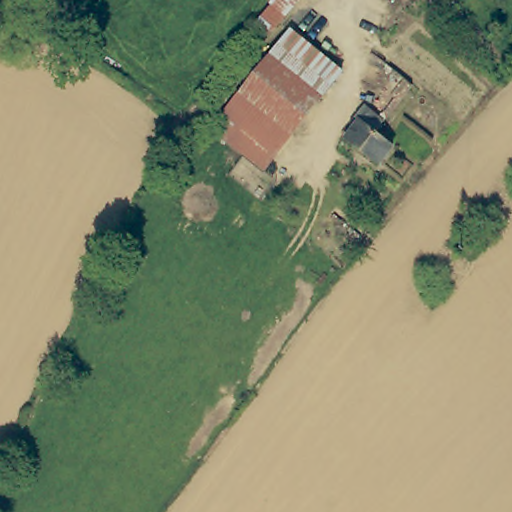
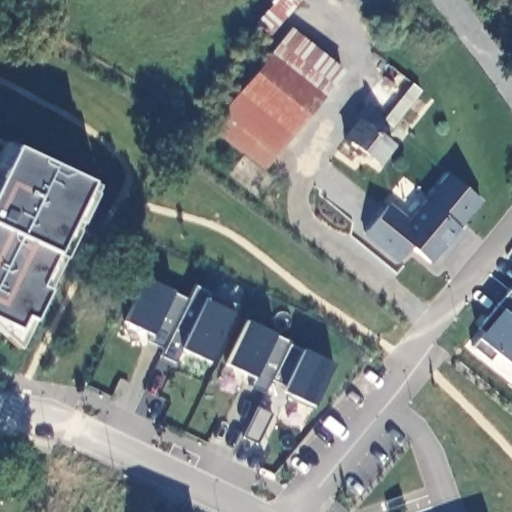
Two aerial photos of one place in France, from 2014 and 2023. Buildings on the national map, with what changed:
unchanged [(273,0),(301,0),(269,34),(254,20),(273,0)]
unchanged [(281,26),(340,65),(270,167),(214,131),(281,26)]
unchanged [(394,154),(381,166),(343,135),(352,125),(347,120),(362,104),(380,118),(369,130),(394,154)]
new [(90,183),(93,194),(63,257),(47,290),(34,320),(21,348),(0,330),(0,157),(6,143),(14,146),(90,183)]
new [(481,202),(460,229),(464,233),(444,258),(439,253),(431,263),(410,246),(400,263),(364,235),(390,204),(410,220),(447,174),(481,202)]
new [(210,362),(181,350),(175,363),(162,356),(165,350),(150,342),(154,335),(126,321),(147,279),(173,292),(189,300),(195,286),(236,305),(233,313),(210,362)]
new [(490,360),(474,347),(479,339),(485,332),(480,328),(500,305),(510,291),(512,289),(512,365),(496,353),(490,360)]
new [(274,333),(303,349),(333,364),(314,407),(283,392),(287,385),(271,379),(264,393),(250,386),(254,378),(225,364),(247,321),(274,333)]
new [(151,512),(150,512),(150,511),(151,512)]

